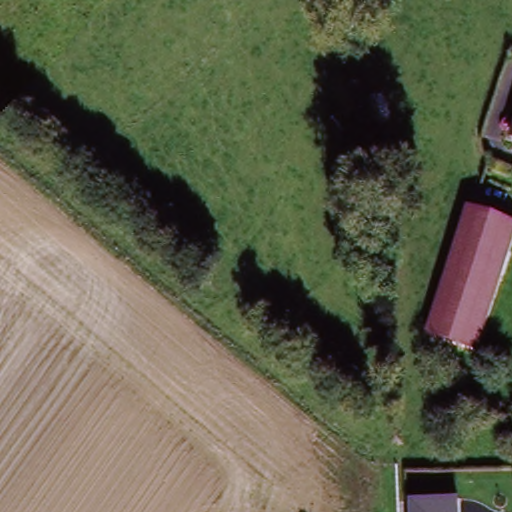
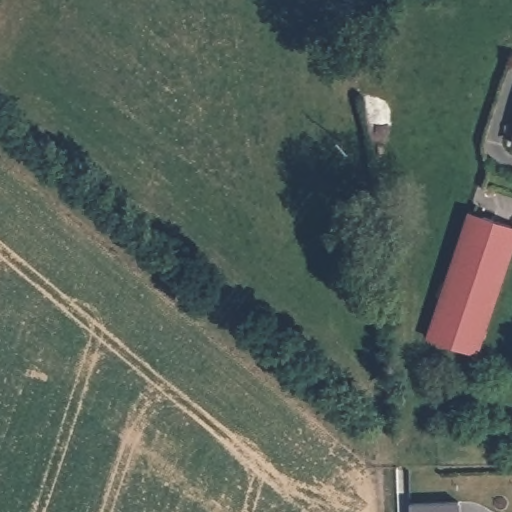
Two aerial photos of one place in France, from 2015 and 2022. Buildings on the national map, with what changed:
unchanged [(474,219),(512,232),(512,259),(475,355),(427,337),(435,318),(474,219)]
unchanged [(430,496),(463,495),(463,512),(410,512),(409,496),(430,496)]

